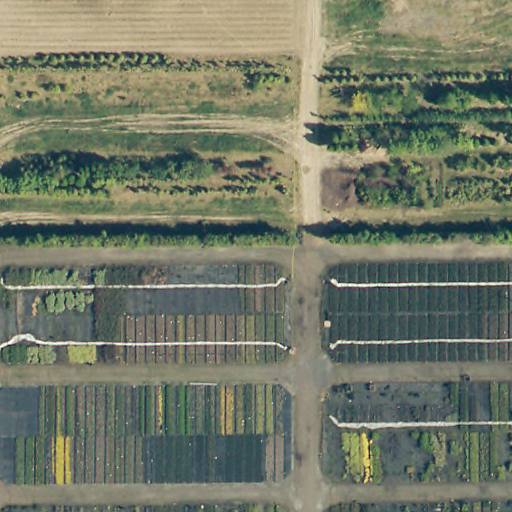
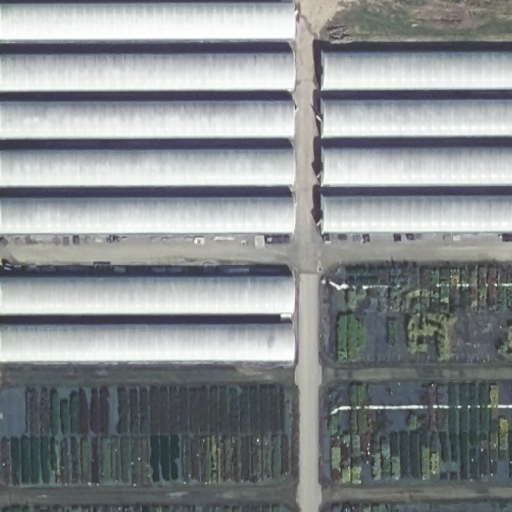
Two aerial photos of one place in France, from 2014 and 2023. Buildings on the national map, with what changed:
new [(512,86),(321,86),(321,53),(512,52),(512,86)]
new [(290,54),(290,85),(0,88),(0,55),(290,54)]
new [(512,133),(320,135),(321,102),(512,100),(512,133)]
new [(291,101),(291,135),(0,135),(0,102),(291,101)]
new [(512,182),(320,184),(321,150),(512,148),(512,182)]
new [(290,150),(290,181),(0,184),(0,150),(290,150)]
new [(512,230),(320,231),(321,197),(512,196),(512,230)]
new [(291,197),(293,229),(0,232),(0,198),(291,197)]
new [(291,277),(290,310),(0,312),(0,277),(291,277)]
new [(291,324),(291,357),(0,359),(0,324),(291,324)]

